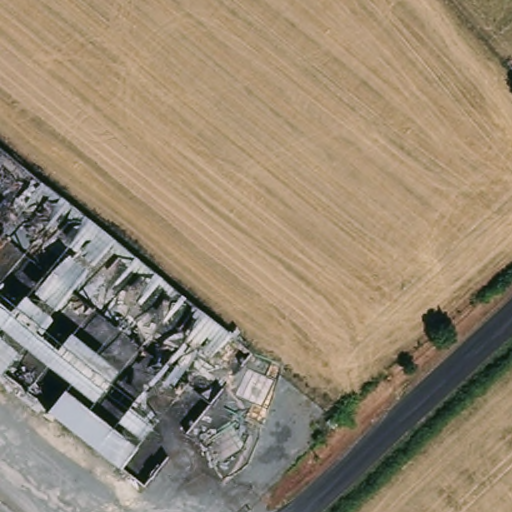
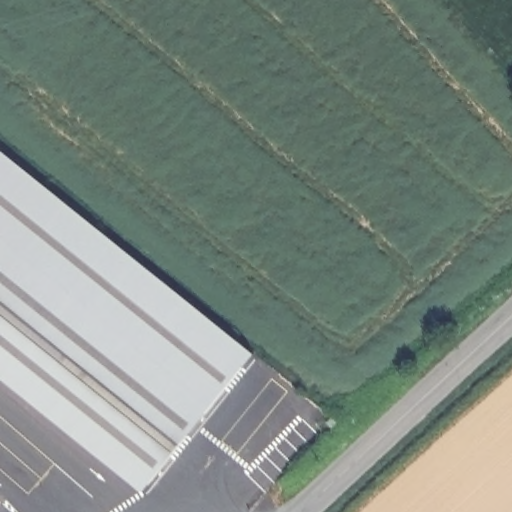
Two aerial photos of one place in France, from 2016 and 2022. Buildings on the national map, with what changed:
new [(143,490),(0,375),(0,148),(254,353),(143,490)]

